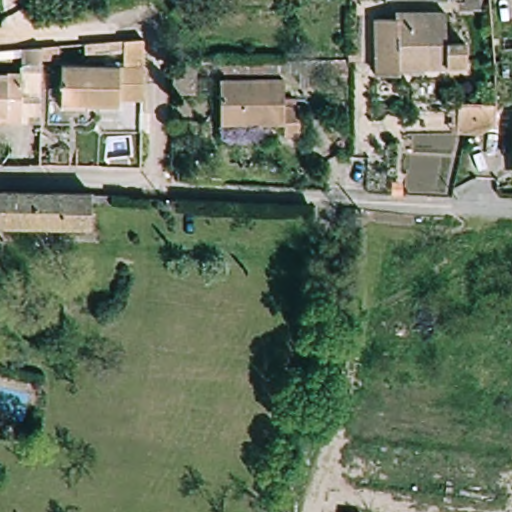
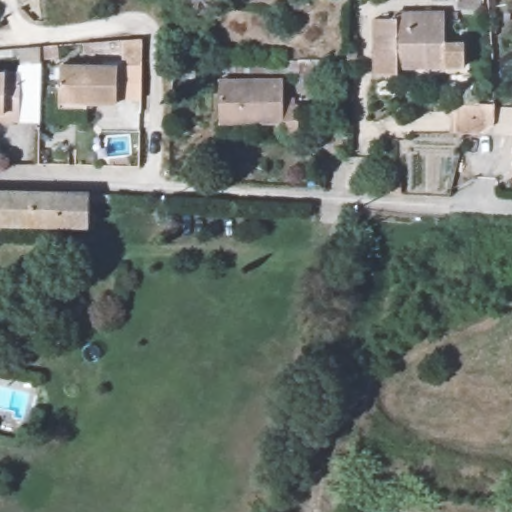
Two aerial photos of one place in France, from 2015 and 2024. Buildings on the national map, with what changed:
unchanged [(396,72),(374,72),(374,17),(395,17),(395,11),(443,10),(444,65),(423,65),(396,65),(396,72)]
unchanged [(78,108),(58,106),(63,62),(117,69),(118,55),(119,33),(142,31),(141,54),(140,71),(139,101),(115,99),(115,102),(81,100),(78,108)]
unchanged [(29,122),(10,121),(9,121),(12,75),(13,61),(32,61),(29,122)]
unchanged [(12,73),(12,75),(9,121),(0,120),(0,72),(12,73)]
unchanged [(301,133),(286,132),(286,119),(223,120),(222,77),(286,77),(287,100),(300,100),(301,133)]
unchanged [(459,136),(457,107),(492,106),(493,122),(479,135),(459,136)]
unchanged [(93,226),(0,222),(0,192),(94,195),(93,226)]

